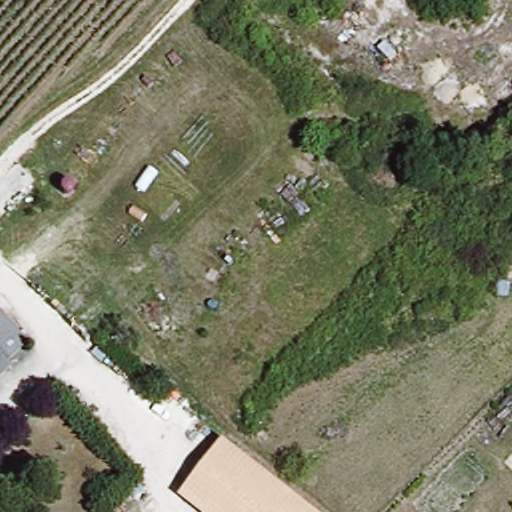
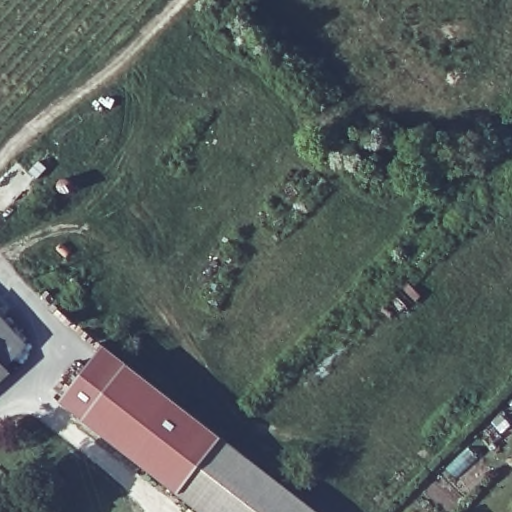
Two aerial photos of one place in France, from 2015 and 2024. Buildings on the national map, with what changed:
unchanged [(20,348),(0,366),(0,326),(20,348)]
new [(178,494),(85,420),(61,402),(105,348),(129,366),(223,438),(316,512),(201,512),(178,494)]
demolished [(320,512),(203,512),(181,494),(225,437),(320,512)]

